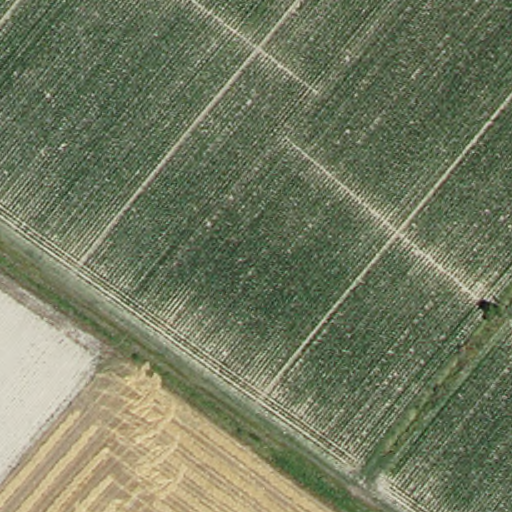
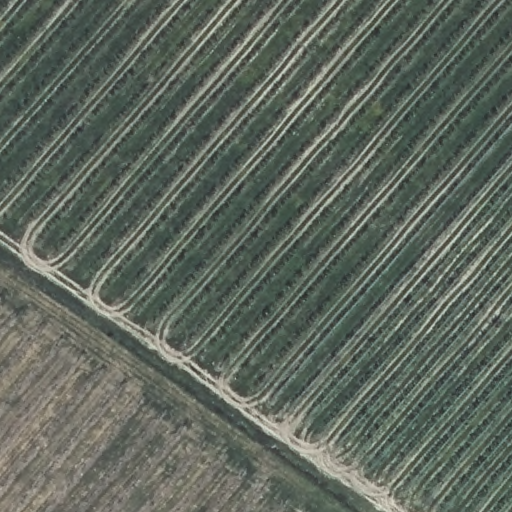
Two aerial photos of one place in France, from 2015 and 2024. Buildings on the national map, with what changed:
[]

